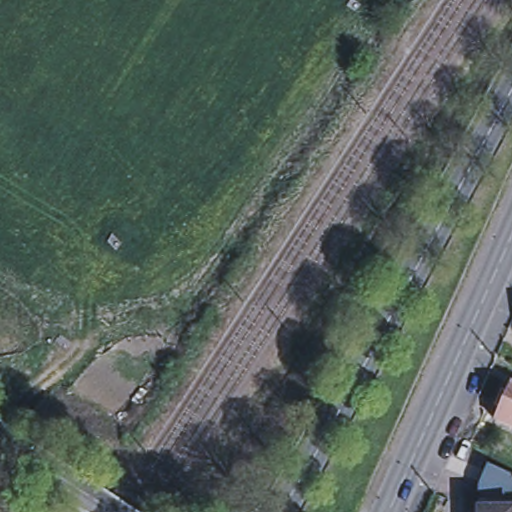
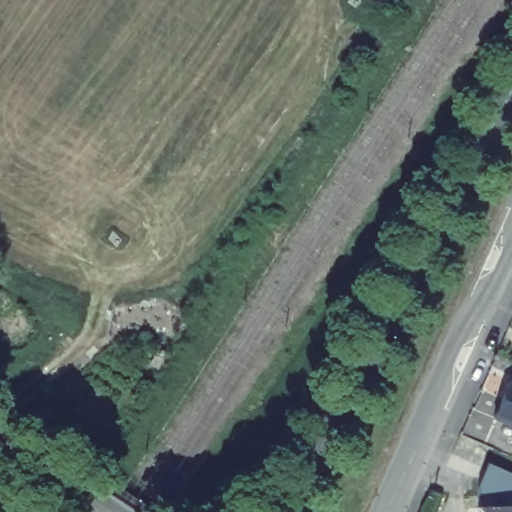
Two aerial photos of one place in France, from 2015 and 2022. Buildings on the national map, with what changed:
unchanged [(512,382),(512,426),(495,418),(510,381),(512,382)]
unchanged [(507,507),(507,497),(477,497),(477,485),(482,476),(487,463),(512,474),(512,512),(478,512),(477,507),(507,507)]

